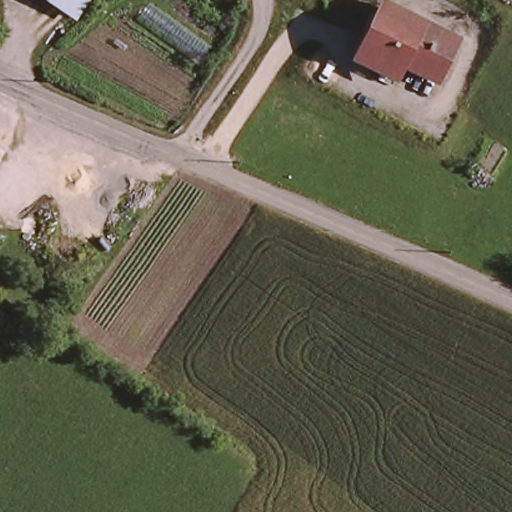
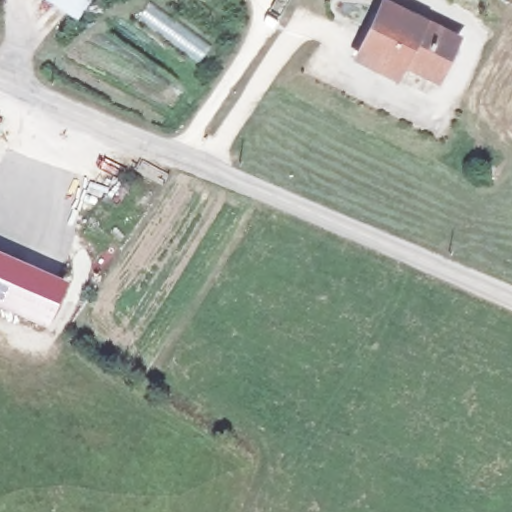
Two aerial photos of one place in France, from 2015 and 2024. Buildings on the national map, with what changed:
unchanged [(61,0),(100,0),(89,16),(61,0)]
unchanged [(435,83),(362,51),(379,14),(386,1),(414,15),(458,34),(435,83)]
new [(61,285),(45,322),(0,303),(0,259),(61,285)]

